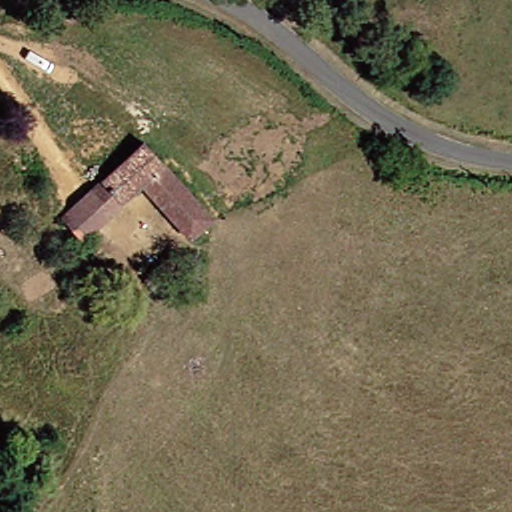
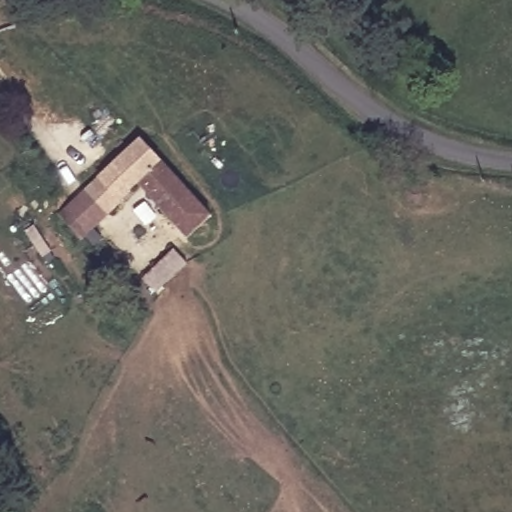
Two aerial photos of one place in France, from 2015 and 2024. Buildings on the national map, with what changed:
unchanged [(93,174),(138,134),(208,205),(184,227),(136,174),(111,195),(93,174)]
unchanged [(79,224),(59,205),(93,174),(111,195),(79,224)]
unchanged [(174,267),(135,287),(124,270),(165,251),(174,267)]

